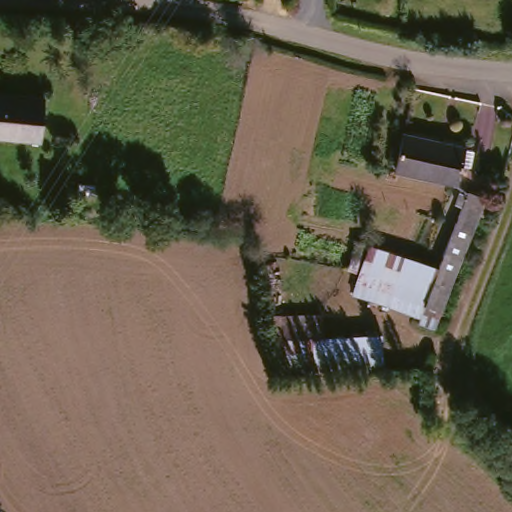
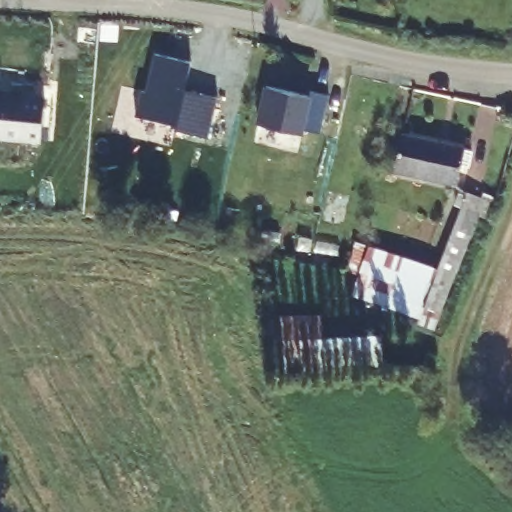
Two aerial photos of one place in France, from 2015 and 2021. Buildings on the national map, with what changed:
new [(184,91),(217,98),(207,136),(175,129),(176,129),(177,124),(136,115),(141,91),(147,92),(155,55),(190,63),(184,91)]
new [(305,127),(303,133),(256,123),(264,86),(310,96),(310,91),(328,96),(320,132),(305,127)]
unchanged [(0,93),(45,98),(42,140),(0,136),(0,93)]
unchanged [(470,148),(467,167),(457,165),(453,182),(392,169),(400,133),(470,148)]
unchanged [(416,326),(418,320),(387,309),(397,284),(407,259),(437,271),(461,216),(453,213),(458,200),(467,205),(470,197),(484,203),(491,205),(483,224),(478,222),(455,281),(447,298),(433,332),(416,326)]
unchanged [(371,245),(380,249),(407,259),(397,284),(387,309),(351,297),(360,275),(371,245)]
unchanged [(276,373),(271,324),(300,321),(299,308),(320,306),(321,319),(324,340),(385,336),(387,366),(276,373)]

